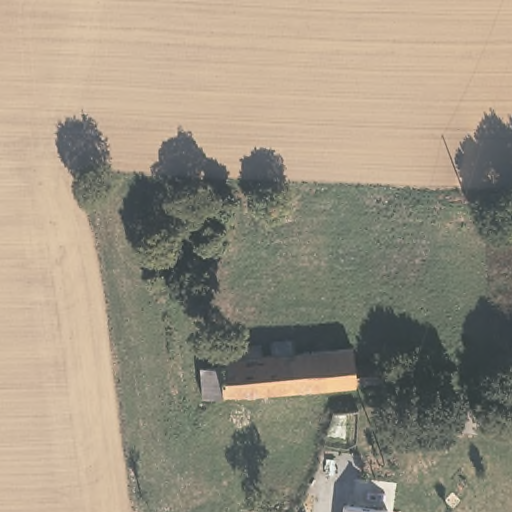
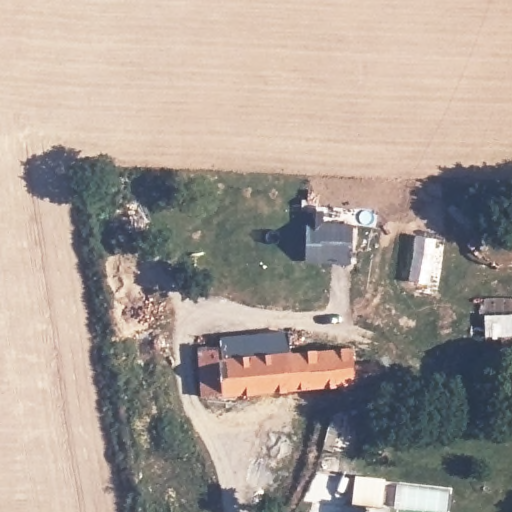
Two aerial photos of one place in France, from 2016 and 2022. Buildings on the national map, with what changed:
new [(307,205),(327,205),(326,222),(355,223),(354,263),(305,261),(307,205)]
unchanged [(209,393),(204,363),(218,359),(256,355),(268,353),(289,353),(354,348),(356,362),(373,362),(372,384),(353,386),(209,393)]
unchanged [(439,417),(437,433),(404,427),(406,414),(439,417)]
unchanged [(383,512),(341,512),(342,506),(384,510),(383,512)]

